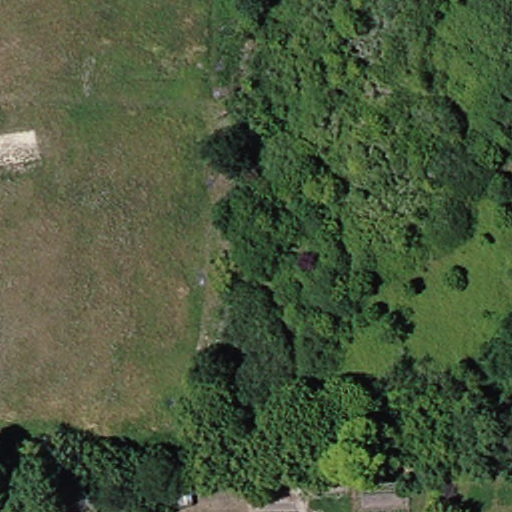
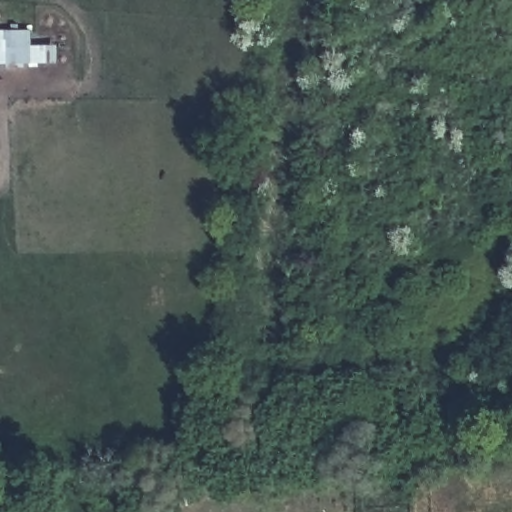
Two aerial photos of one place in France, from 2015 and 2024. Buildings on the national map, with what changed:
new [(33,30),(33,45),(58,45),(58,64),(0,64),(0,30),(33,30)]

